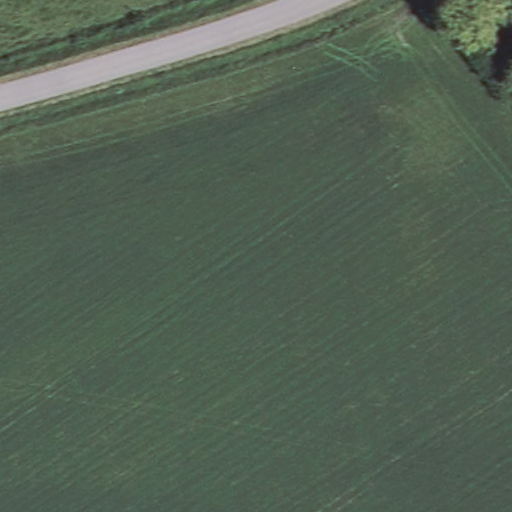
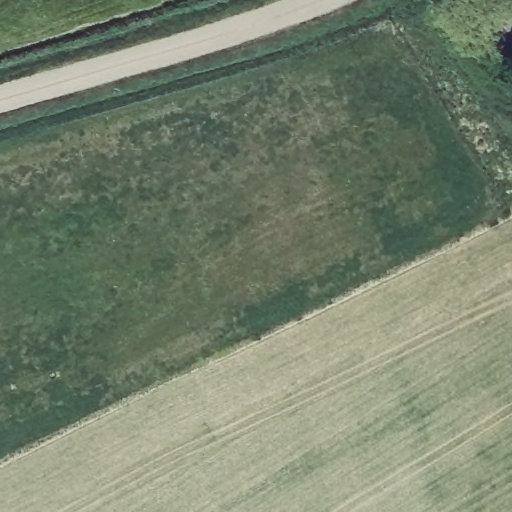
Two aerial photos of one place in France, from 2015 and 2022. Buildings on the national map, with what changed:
unchanged [(507,0),(512,8),(512,36),(508,40),(485,0),(507,0)]

